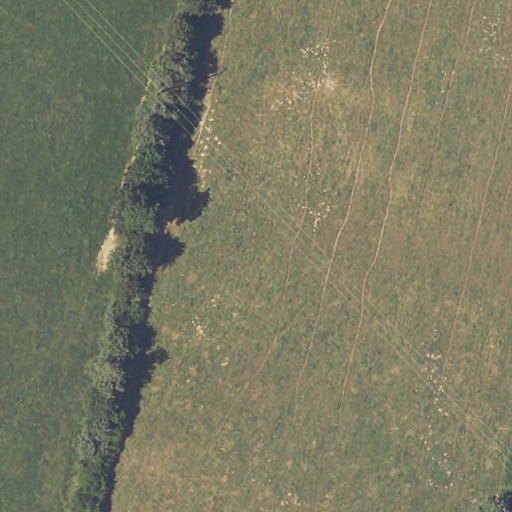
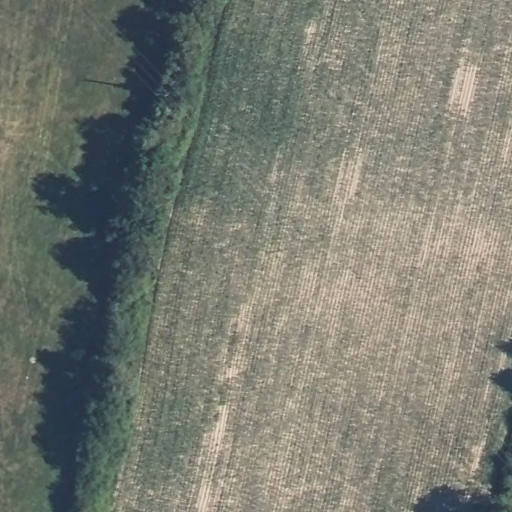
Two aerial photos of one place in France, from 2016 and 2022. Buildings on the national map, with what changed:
[]

